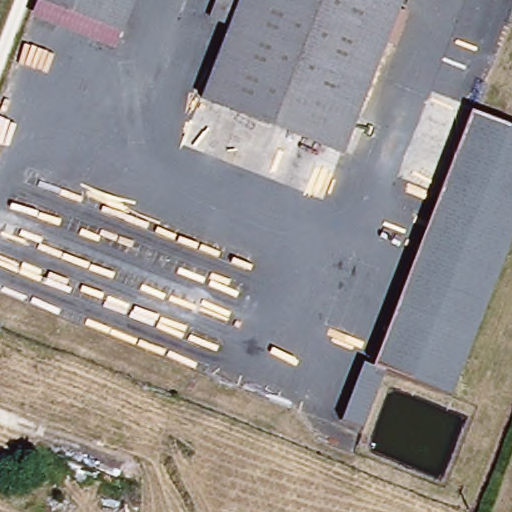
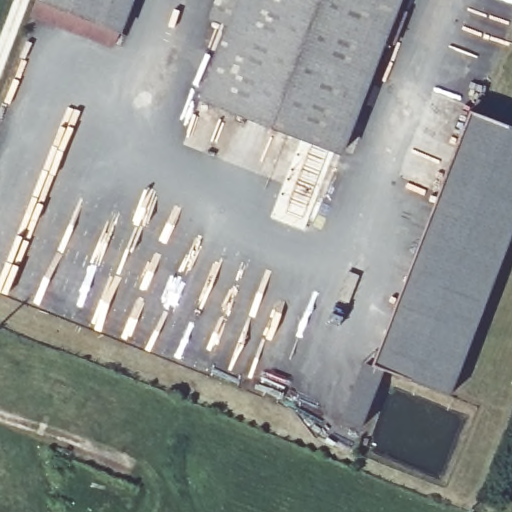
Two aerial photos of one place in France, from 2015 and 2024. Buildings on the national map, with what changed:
unchanged [(123,42),(40,10),(44,0),(65,0),(129,26),(123,42)]
unchanged [(139,0),(129,26),(65,0),(139,0)]
unchanged [(234,25),(243,0),(405,0),(346,153),(205,98),(234,25)]
unchanged [(214,17),(221,0),(243,0),(234,25),(214,17)]
unchanged [(436,197),(469,111),(512,127),(512,226),(436,197)]
unchanged [(436,197),(512,226),(512,233),(451,396),(383,370),(372,366),(436,197)]
unchanged [(361,427),(340,420),(362,362),(372,366),(383,370),(361,427)]

